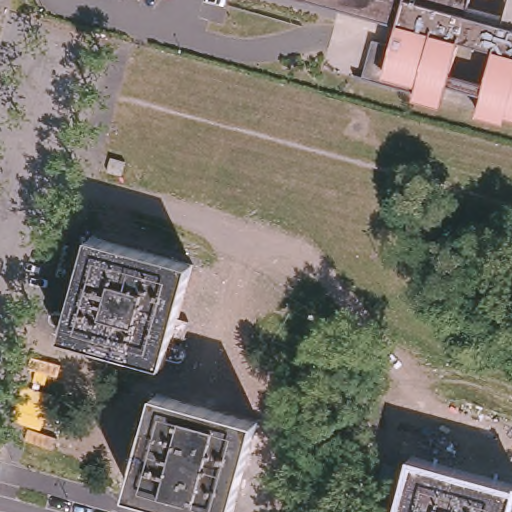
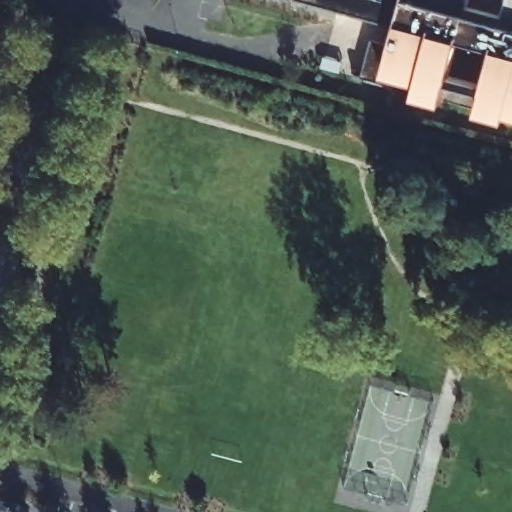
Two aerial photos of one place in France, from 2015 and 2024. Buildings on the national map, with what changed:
unchanged [(413,100),(361,77),(371,38),(391,44),(395,24),(301,0),(512,0),(512,125),(503,124),(475,117),(479,100),(444,91),(440,107),(413,100)]
demolished [(107,170),(111,156),(124,160),(121,173),(107,170)]
demolished [(62,339),(64,334),(59,332),(62,321),(57,319),(48,316),(46,312),(48,307),(54,306),(60,307),(66,309),(87,231),(187,258),(172,310),(185,314),(178,339),(181,340),(183,343),(184,346),(184,350),(182,352),(179,354),(174,354),(161,351),(159,359),(135,353),(133,358),(62,339)]
demolished [(232,512),(200,512),(131,493),(157,393),(257,421),(232,512)]
demolished [(404,496),(413,463),(512,490),(512,496),(508,512),(394,512),(398,496),(404,496)]

